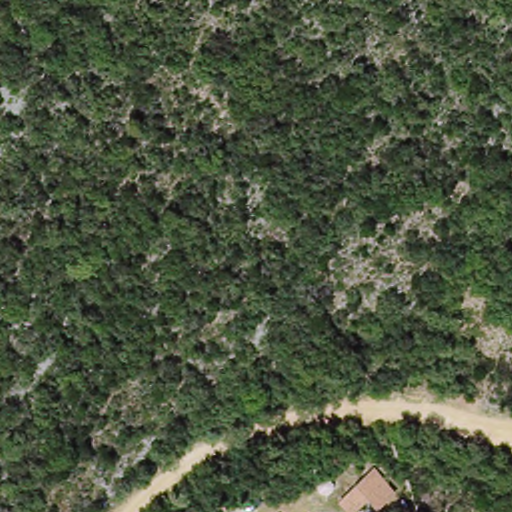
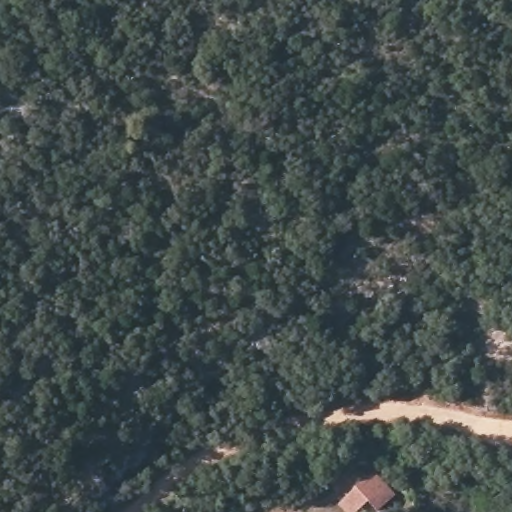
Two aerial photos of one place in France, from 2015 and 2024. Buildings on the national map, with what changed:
unchanged [(378,512),(376,512),(367,503),(356,512),(344,512),(336,503),(374,468),(399,493),(378,512)]

